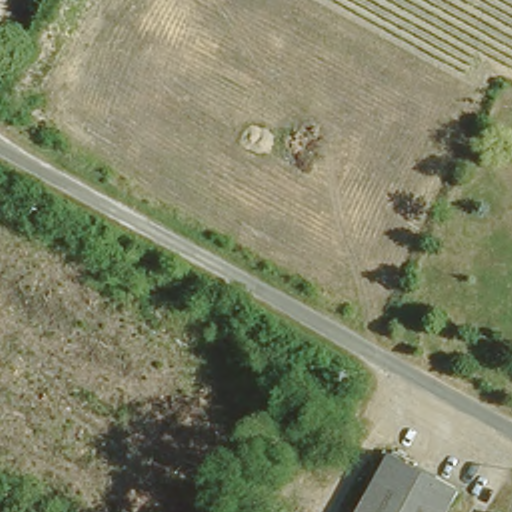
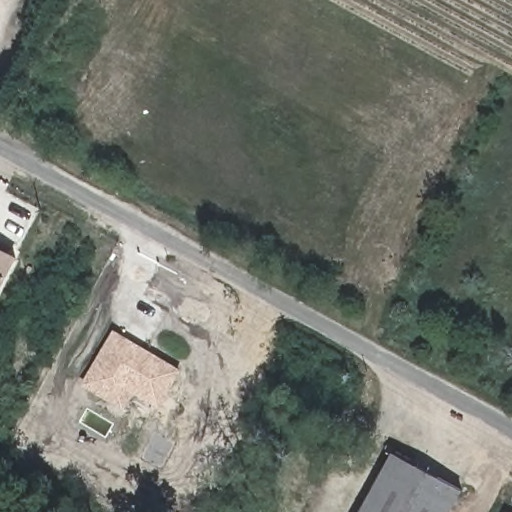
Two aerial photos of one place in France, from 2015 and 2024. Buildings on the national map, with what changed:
new [(16,255),(0,288),(0,246),(16,255)]
new [(114,328),(181,367),(159,406),(134,391),(125,407),(81,383),(114,328)]
unchanged [(456,483),(440,512),(354,512),(390,447),(456,483)]
unchanged [(502,511),(504,512),(502,512),(502,511)]

